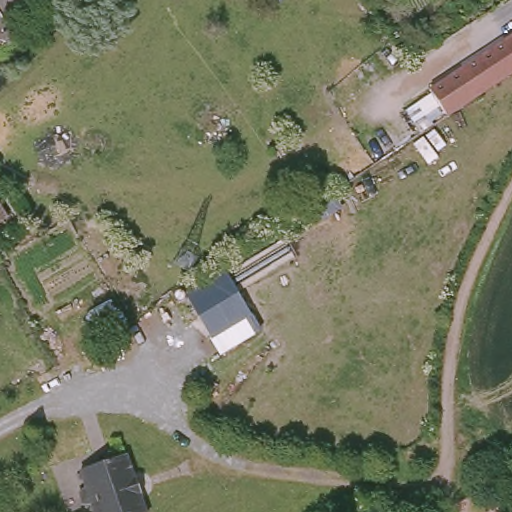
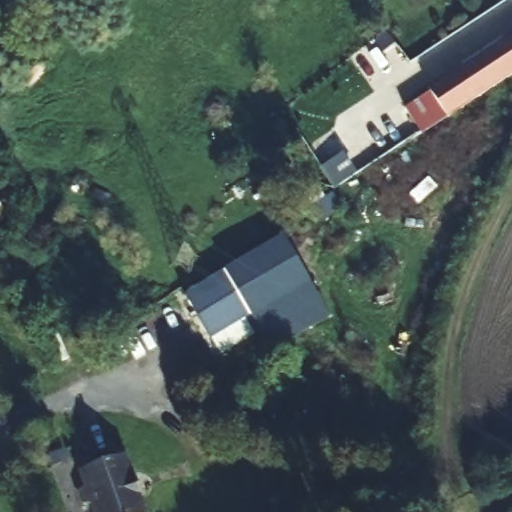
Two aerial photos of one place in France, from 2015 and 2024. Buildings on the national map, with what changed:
unchanged [(17,2),(6,9),(10,15),(0,22),(0,0),(33,0),(22,8),(17,2)]
unchanged [(447,66),(457,60),(474,50),(485,44),(501,34),(512,26),(512,67),(504,72),(494,79),(477,90),(442,112),(422,84),(447,66)]
new [(421,128),(405,107),(427,92),(442,112),(421,128)]
unchanged [(0,216),(0,209),(3,214),(0,216)]
new [(284,234),(334,317),(274,351),(253,316),(227,270),(284,234)]
unchanged [(186,292),(227,270),(253,316),(210,337),(186,292)]
unchanged [(137,512),(92,512),(90,502),(78,501),(76,490),(82,481),(79,465),(122,453),(128,476),(132,475),(137,491),(132,492),(137,512)]

